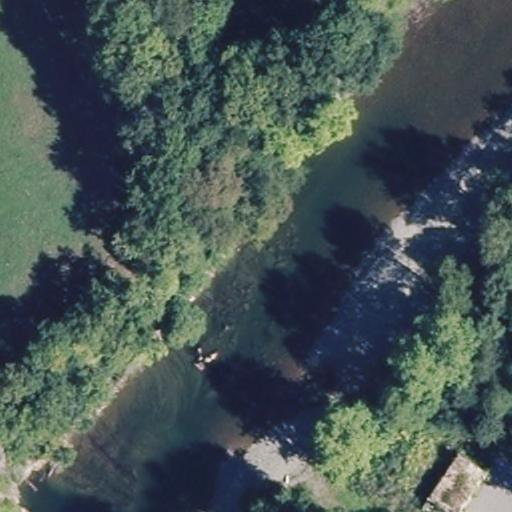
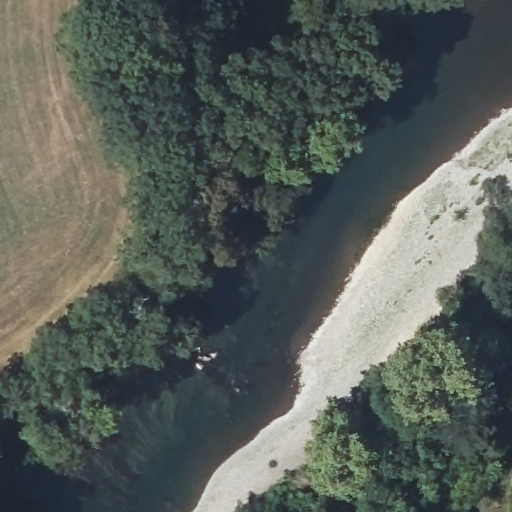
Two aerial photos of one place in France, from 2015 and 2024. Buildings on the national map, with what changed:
unchanged [(448,443),(474,462),(441,506),(415,486),(448,443)]

